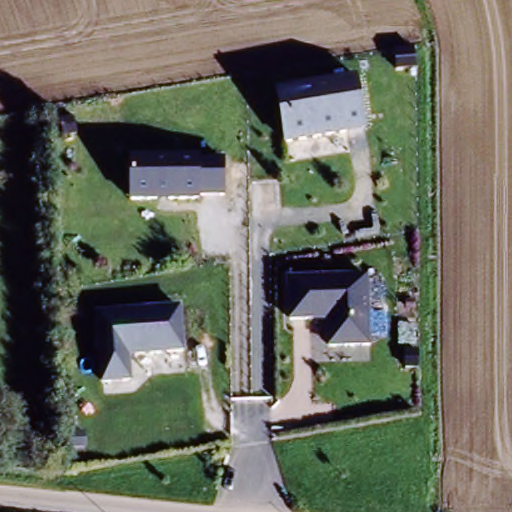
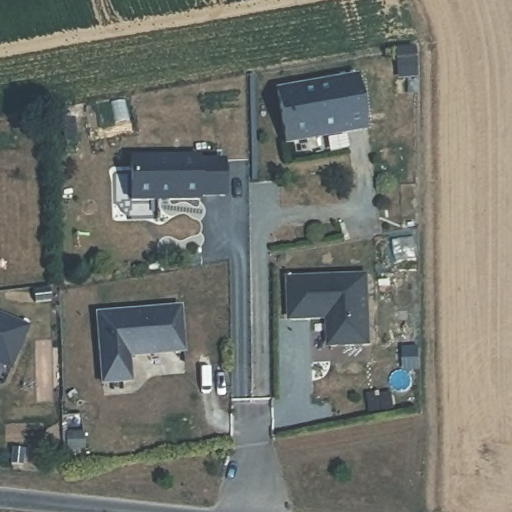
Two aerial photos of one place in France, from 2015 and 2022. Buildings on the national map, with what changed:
unchanged [(280,85),(361,72),(368,132),(291,143),(280,85)]
unchanged [(228,200),(137,195),(143,156),(231,157),(228,200)]
unchanged [(374,275),(376,343),(338,342),(336,320),(301,321),(300,279),(374,275)]
unchanged [(190,348),(136,352),(135,378),(107,380),(105,313),(186,308),(190,348)]
new [(11,363),(4,366),(0,364),(0,309),(29,322),(11,363)]

